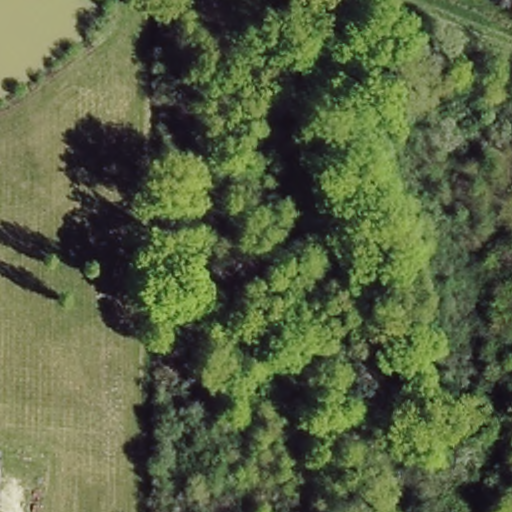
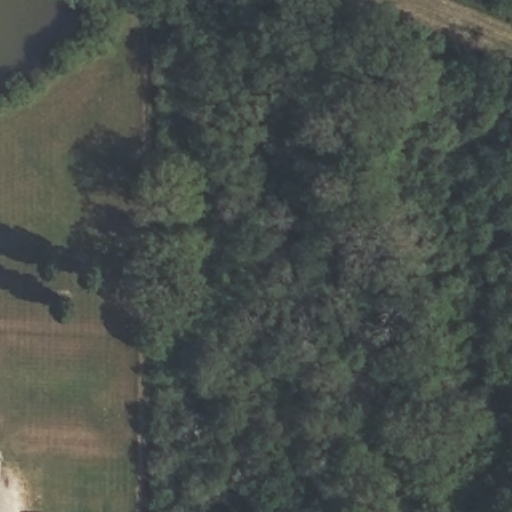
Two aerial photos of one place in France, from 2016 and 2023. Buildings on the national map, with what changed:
unchanged [(204,487),(206,509),(187,510),(185,488),(204,487)]

